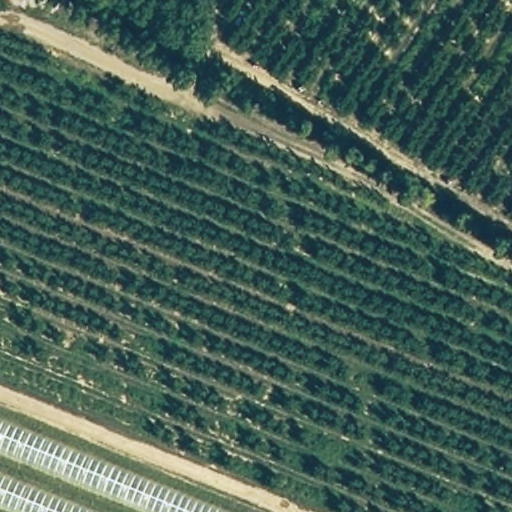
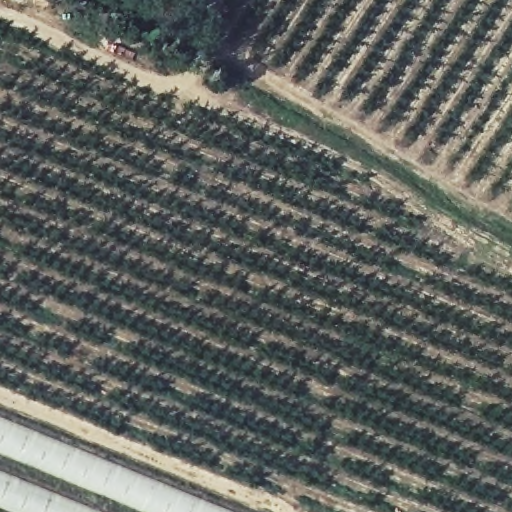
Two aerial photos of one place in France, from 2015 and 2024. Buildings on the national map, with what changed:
unchanged [(232,512),(0,512),(0,419),(232,512)]

